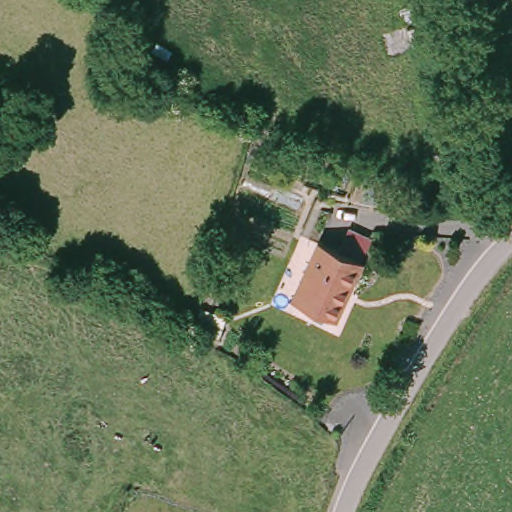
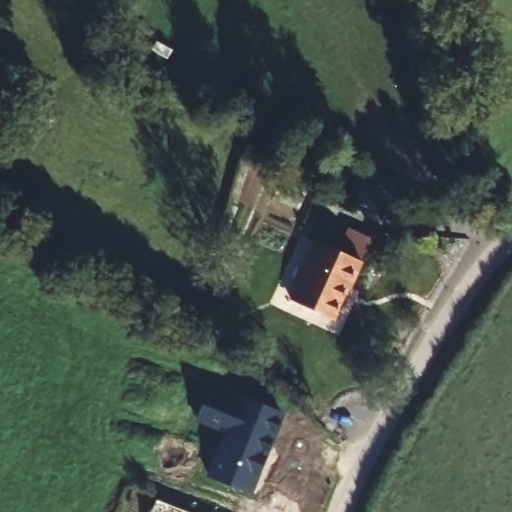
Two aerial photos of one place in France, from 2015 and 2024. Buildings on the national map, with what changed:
unchanged [(329,247),(366,274),(328,323),(294,298),(329,247)]
unchanged [(231,308),(225,331),(211,326),(217,303),(231,308)]
new [(253,495),(207,477),(224,434),(195,422),(209,390),(237,402),(240,395),(285,414),(253,495)]
new [(187,512),(151,512),(157,500),(187,512)]

